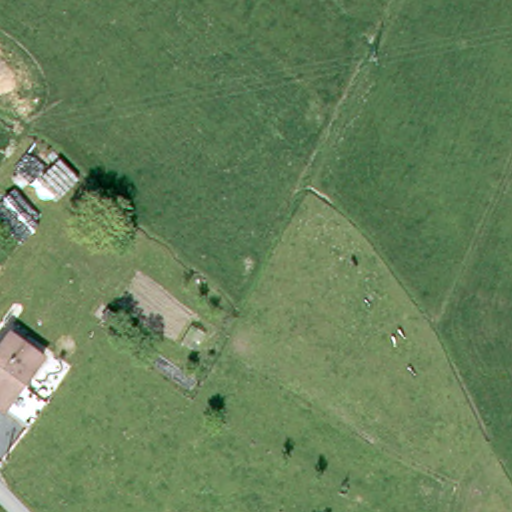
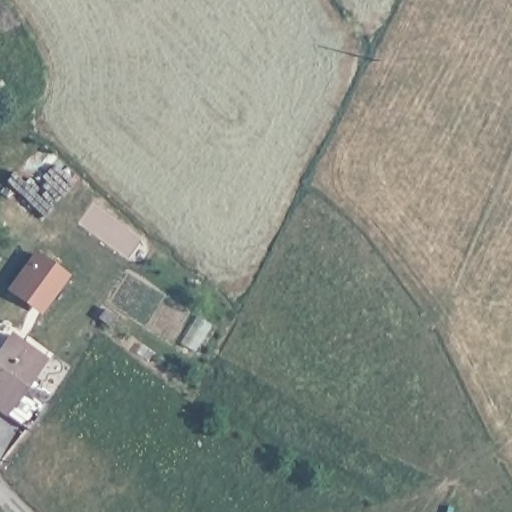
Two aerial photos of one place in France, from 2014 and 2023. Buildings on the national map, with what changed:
new [(70,276),(43,314),(6,289),(33,250),(70,276)]
unchanged [(44,359),(5,413),(0,410),(0,349),(11,334),(44,359)]

